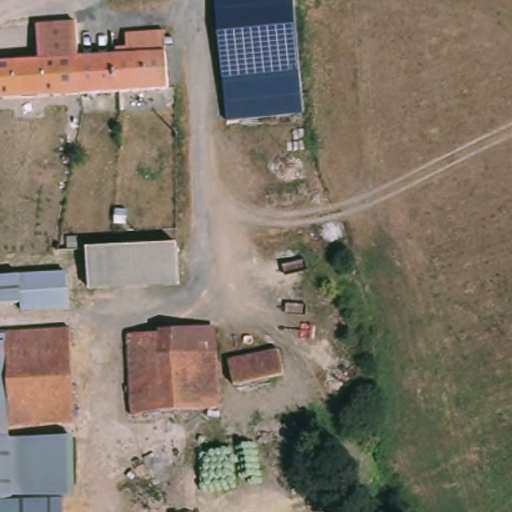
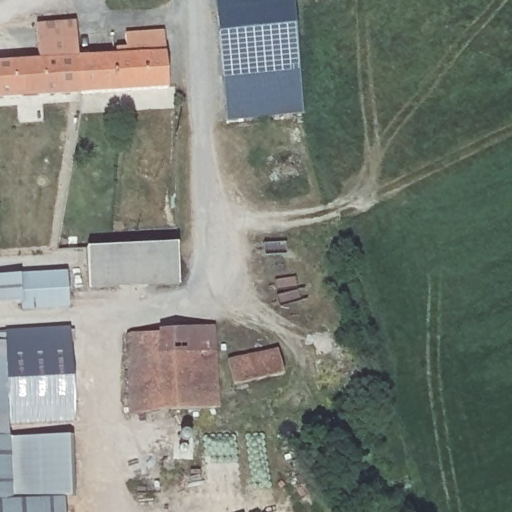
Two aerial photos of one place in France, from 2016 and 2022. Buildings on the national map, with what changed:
unchanged [(220,103),(221,100),(222,95),(221,80),(215,0),(296,0),(300,69),(301,121),(232,123),(220,123),(220,103)]
unchanged [(45,37),(74,37),(74,64),(74,99),(0,101),(0,39),(45,37)]
unchanged [(74,64),(124,63),(125,42),(166,41),(164,97),(74,99),(74,64)]
unchanged [(144,250),(177,248),(178,290),(84,296),(83,271),(82,254),(113,252),(144,250)]
unchanged [(47,275),(61,274),(64,309),(27,312),(25,311),(24,304),(3,307),(0,307),(0,280),(23,277),(47,275)]
unchanged [(220,356),(222,406),(172,410),(135,420),(128,334),(165,331),(173,331),(218,328),(220,347),(220,354),(220,356)]
unchanged [(30,438),(9,438),(3,344),(2,333),(66,329),(72,420),(60,421),(30,423),(30,436),(30,438)]
unchanged [(3,344),(9,438),(30,438),(33,438),(35,497),(0,500),(0,344),(3,344)]
unchanged [(234,381),(233,355),(276,354),(280,354),(280,378),(278,379),(234,381)]
unchanged [(73,496),(57,497),(35,497),(35,496),(33,438),(30,438),(30,436),(60,436),(71,436),(73,496)]
unchanged [(58,497),(59,512),(0,512),(0,500),(35,497),(58,497)]

